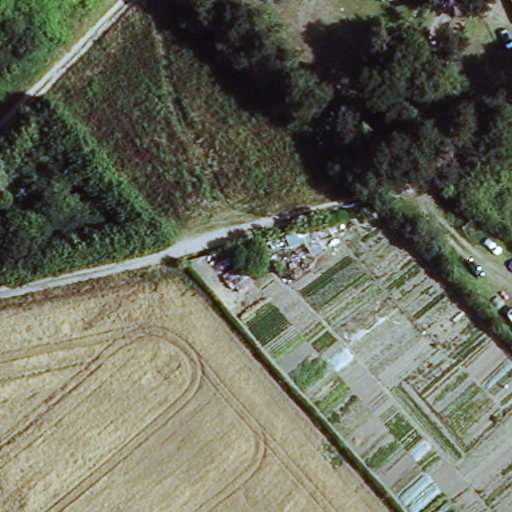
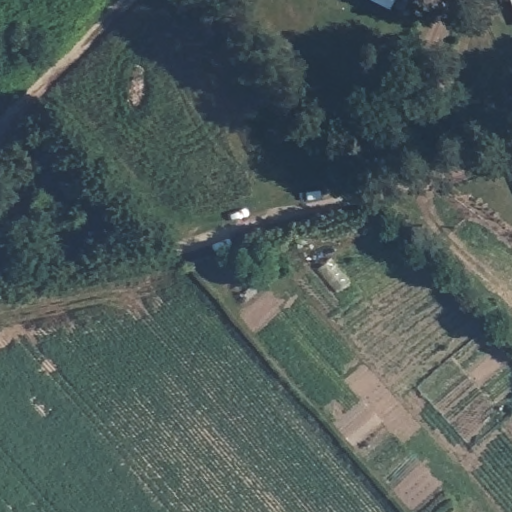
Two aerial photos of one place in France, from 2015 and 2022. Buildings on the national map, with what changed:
[]

